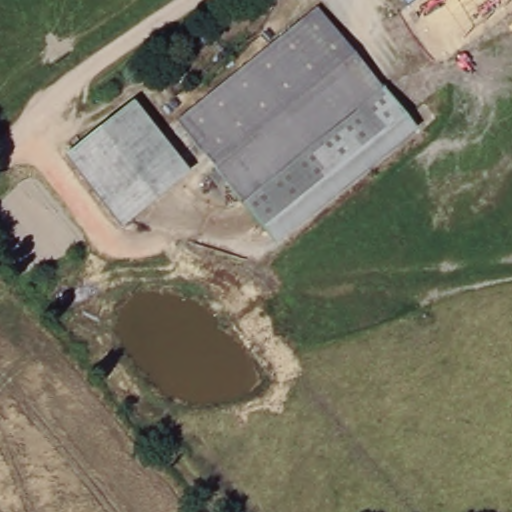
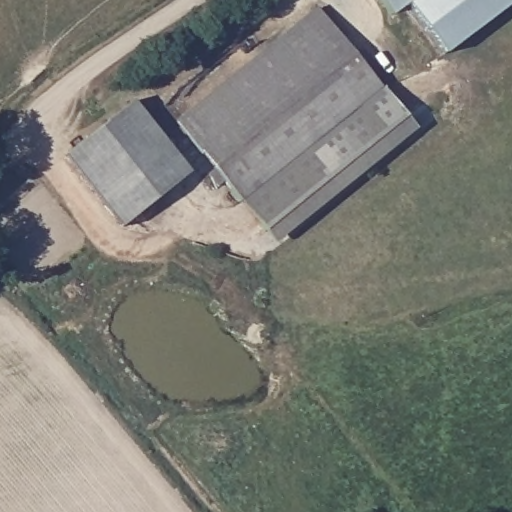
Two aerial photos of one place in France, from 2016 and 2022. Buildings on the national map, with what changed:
new [(512,5),(444,55),(407,5),(392,16),(380,0),(512,0),(512,5)]
unchanged [(174,120),(315,9),(413,133),(276,244),(174,120)]
unchanged [(120,229),(63,155),(132,103),(190,173),(120,229)]

